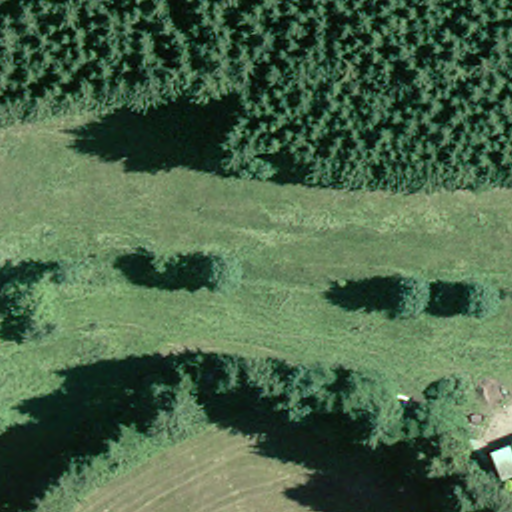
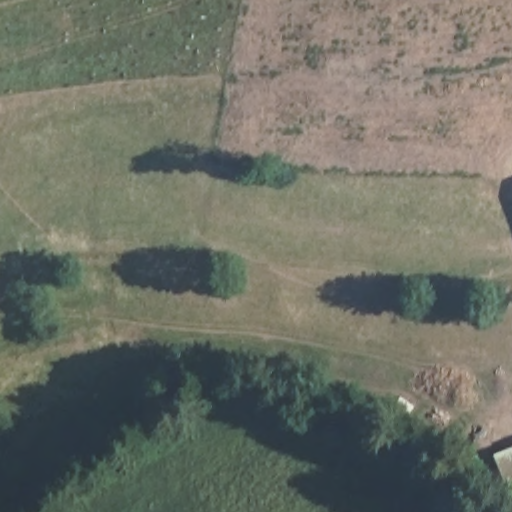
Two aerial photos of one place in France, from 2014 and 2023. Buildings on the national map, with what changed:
unchanged [(512,445),(512,478),(500,483),(490,454),(512,445)]

